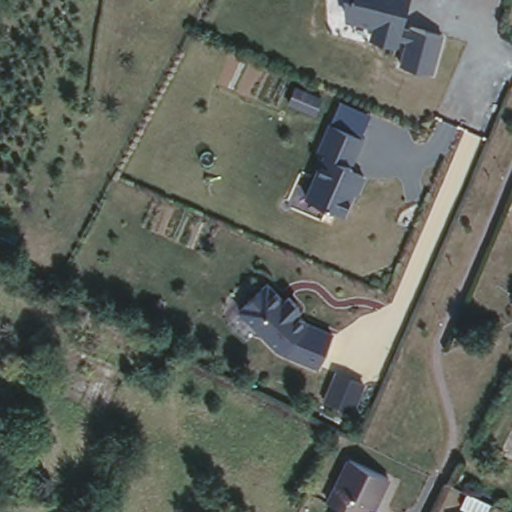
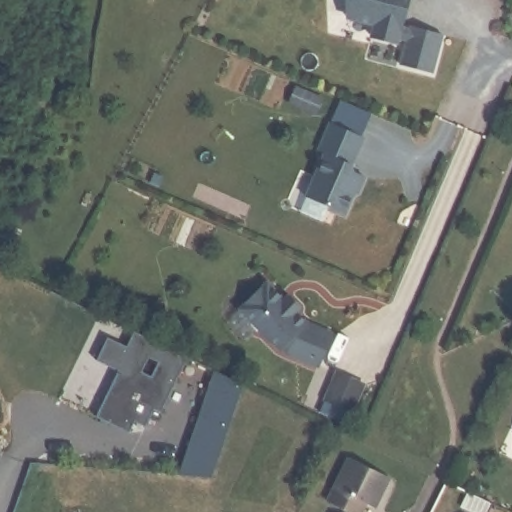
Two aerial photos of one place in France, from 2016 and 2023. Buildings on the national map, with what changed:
unchanged [(402,23),(446,33),(436,76),(403,67),(405,47),(370,39),(371,28),(345,22),(349,0),(408,0),(402,23)]
unchanged [(367,136),(351,168),(369,175),(361,192),(354,194),(347,211),(305,194),(321,159),(313,154),(331,119),(367,136)]
unchanged [(305,322),(332,333),(321,368),(277,353),(240,309),(271,281),(305,322)]
new [(160,408),(148,402),(141,416),(131,412),(126,428),(92,413),(113,362),(94,354),(103,331),(122,340),(127,328),(184,355),(160,408)]
new [(243,386),(212,479),(180,477),(215,372),(243,386)]
unchanged [(378,506),(365,502),(360,512),(352,512),(329,502),(348,455),(393,475),(378,506)]
unchanged [(488,512),(477,512),(463,504),(470,489),(493,500),(488,512)]
unchanged [(345,512),(331,512),(334,506),(345,512)]

